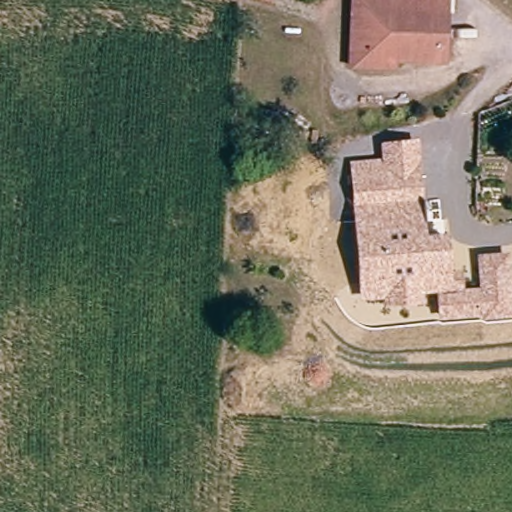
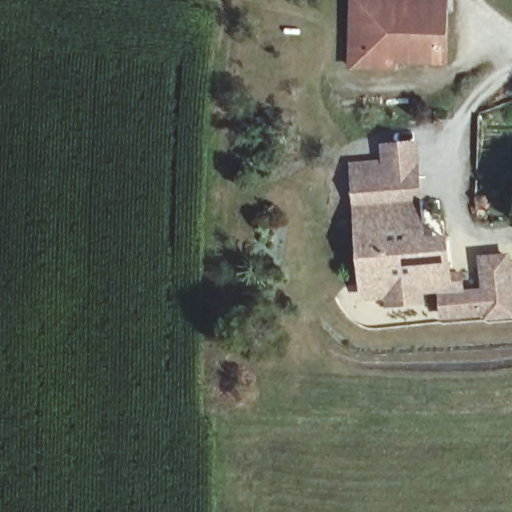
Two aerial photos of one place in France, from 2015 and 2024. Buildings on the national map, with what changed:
unchanged [(352,0),(443,0),(443,9),(428,9),(352,9),(352,0)]
unchanged [(353,26),(352,18),(352,9),(428,9),(443,9),(443,54),(443,60),(397,60),(396,69),(361,69),(352,69),(353,26)]
unchanged [(438,259),(445,258),(446,272),(458,272),(459,290),(482,289),(480,256),(505,254),(509,312),(484,314),(484,309),(440,313),(439,299),(360,304),(350,172),(349,158),(395,155),(396,168),(409,167),(414,234),(436,233),(438,259)]

